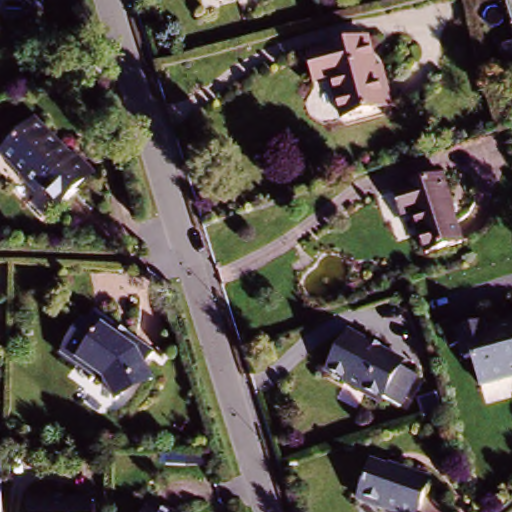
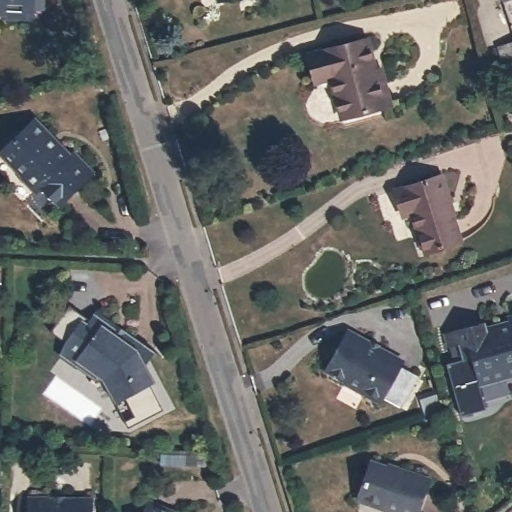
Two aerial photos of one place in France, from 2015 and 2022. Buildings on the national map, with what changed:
unchanged [(27,16),(27,26),(0,25),(0,0),(38,0),(37,17),(27,16)]
unchanged [(218,6),(217,0),(240,0),(218,6)]
unchanged [(510,25),(503,0),(512,0),(512,24),(510,25)]
unchanged [(500,47),(512,42),(512,87),(500,47)]
unchanged [(362,44),(373,87),(380,86),(386,110),(337,123),(327,82),(325,76),(313,79),(306,58),(362,44)]
unchanged [(50,140),(69,159),(72,157),(90,176),(58,206),(40,188),(35,194),(20,178),(24,175),(2,152),(35,121),(51,138),(50,140)]
unchanged [(450,210),(462,246),(427,257),(426,255),(422,253),(418,243),(421,239),(414,219),(404,222),(395,196),(443,180),(452,209),(450,210)]
unchanged [(501,370),(503,376),(476,384),(467,356),(460,358),(456,342),(445,346),(441,332),(479,322),(480,327),(493,323),(495,326),(504,323),(502,316),(512,313),(512,366),(501,370)]
unchanged [(117,402),(105,392),(101,385),(105,381),(97,375),(94,379),(76,367),(73,372),(58,362),(65,352),(61,349),(76,326),(82,331),(90,321),(107,333),(105,337),(116,345),(121,337),(147,357),(140,369),(148,385),(117,402)]
unchanged [(390,407),(386,406),(373,398),(370,402),(355,393),(356,392),(317,371),(338,332),(392,362),(390,367),(403,374),(407,376),(390,407)]
unchanged [(428,485),(418,512),(386,512),(385,512),(384,512),(378,512),(357,505),(370,467),(406,480),(406,477),(428,485)]
unchanged [(29,512),(29,503),(47,503),(47,506),(63,506),(90,505),(91,512),(29,512)]
unchanged [(155,512),(140,512),(142,507),(155,512)]

